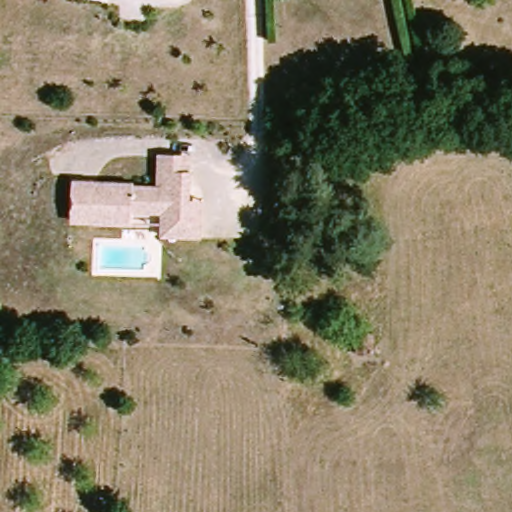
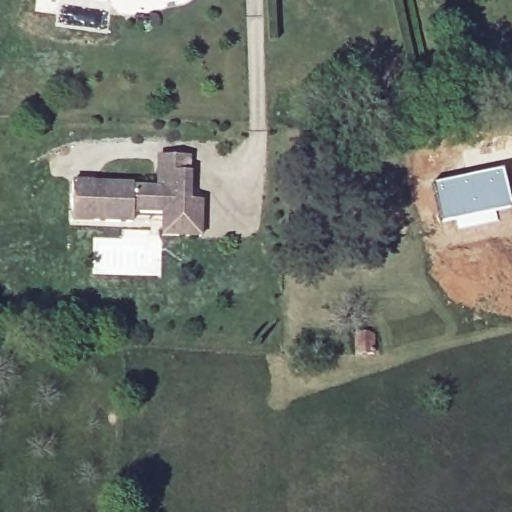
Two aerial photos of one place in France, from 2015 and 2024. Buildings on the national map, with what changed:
unchanged [(100,0),(105,0),(105,1),(100,0)]
unchanged [(202,240),(162,240),(163,226),(133,225),(94,222),(72,222),(72,212),(74,182),(134,185),(134,188),(160,189),(160,174),(160,157),(192,158),(192,175),(191,202),(202,202),(202,240)]
new [(503,168),(511,209),(495,212),(496,216),(441,224),(433,182),(503,168)]

